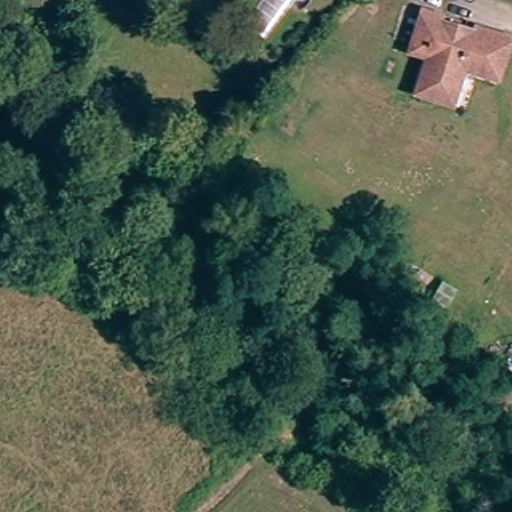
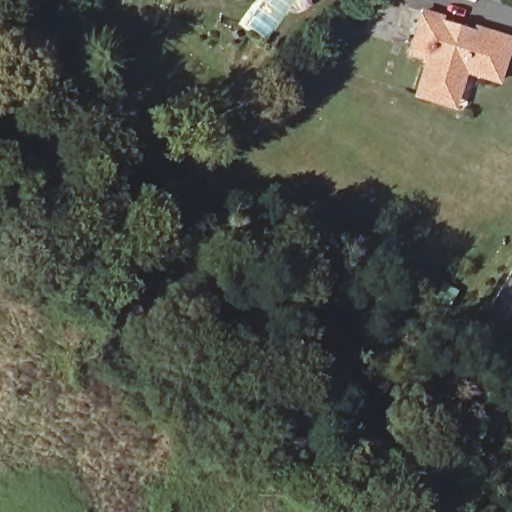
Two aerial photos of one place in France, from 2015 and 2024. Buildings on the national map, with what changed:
unchanged [(434,96),(415,90),(424,60),(408,54),(411,43),(421,13),(438,19),(471,30),(505,41),(494,79),(476,75),(464,70),(458,85),(451,102),(434,96)]

